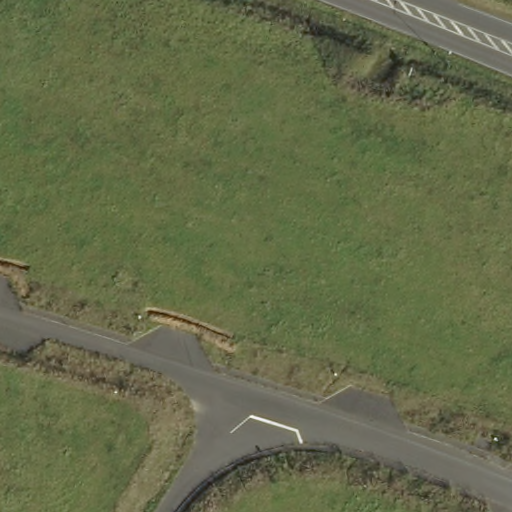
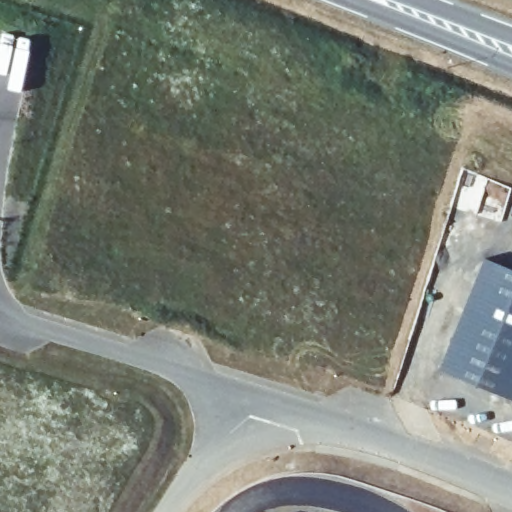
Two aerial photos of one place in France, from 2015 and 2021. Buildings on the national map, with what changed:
new [(512,271),(512,403),(437,373),(483,258),(512,271)]

